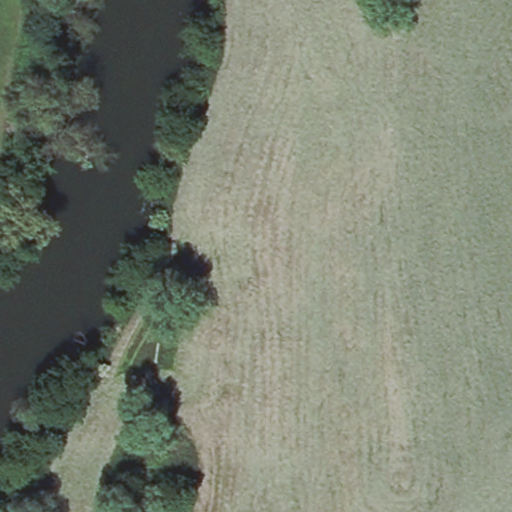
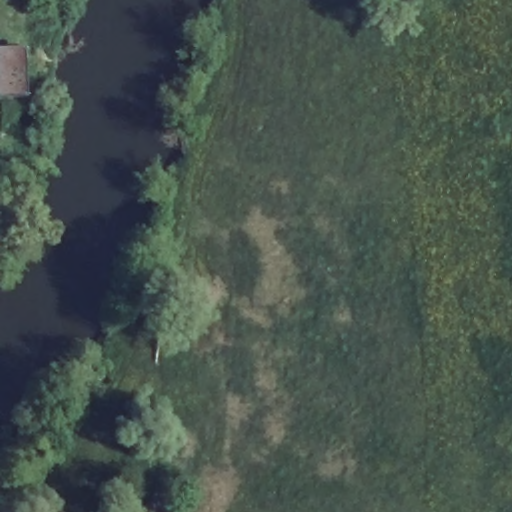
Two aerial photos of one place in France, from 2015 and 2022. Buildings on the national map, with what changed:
new [(30,95),(0,97),(0,47),(28,46),(30,95)]

